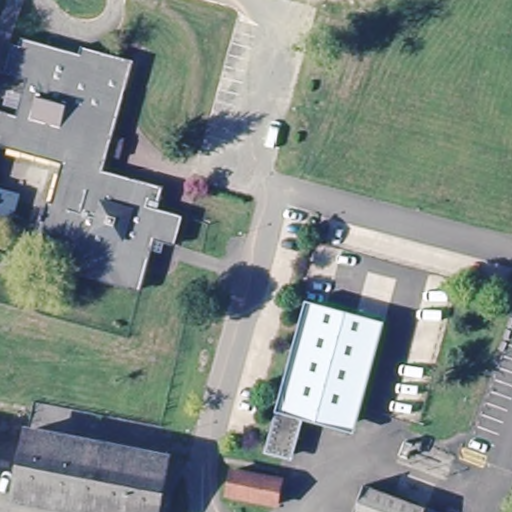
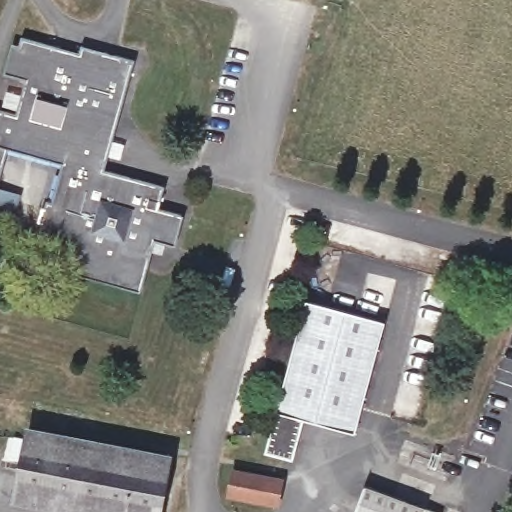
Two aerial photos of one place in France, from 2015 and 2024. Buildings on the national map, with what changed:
unchanged [(16,114),(24,81),(10,78),(21,37),(57,46),(78,51),(76,62),(80,44),(134,57),(108,162),(170,178),(165,194),(156,192),(155,197),(187,205),(179,240),(161,236),(147,288),(73,269),(78,244),(38,234),(48,198),(56,200),(68,155),(0,138),(0,110),(16,114)]
unchanged [(3,187),(0,198),(0,186),(3,187)]
unchanged [(267,454),(280,410),(308,304),(384,324),(356,434),(302,420),(292,460),(267,454)]
unchanged [(100,512),(15,496),(27,431),(167,457),(158,512),(100,512)]
unchanged [(281,507),(233,498),(238,473),(285,482),(281,507)]
unchanged [(438,512),(355,512),(365,487),(438,512)]

